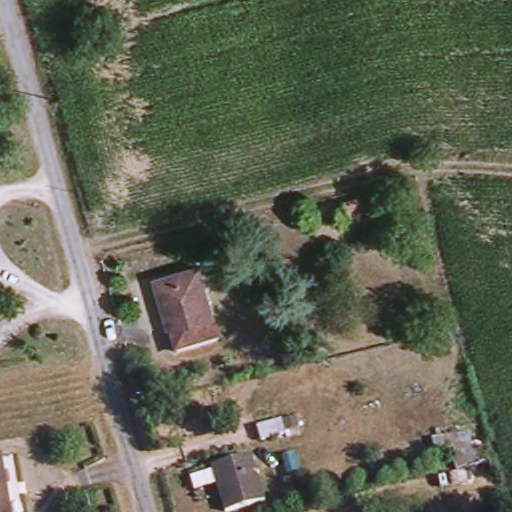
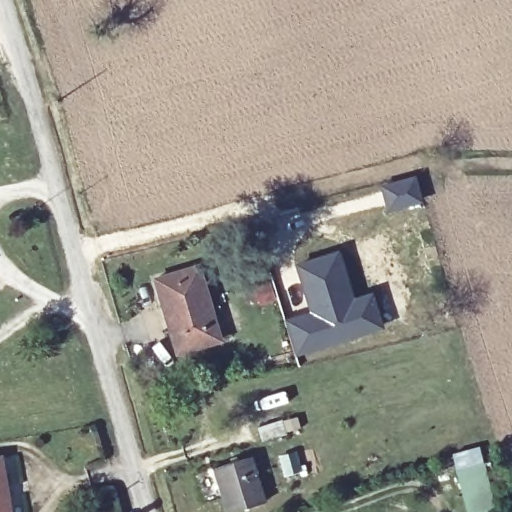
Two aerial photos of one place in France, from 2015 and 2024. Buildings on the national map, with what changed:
new [(415,173),(423,202),(387,211),(378,182),(415,173)]
unchanged [(353,228),(351,217),(362,214),(365,226),(353,228)]
new [(308,309),(292,262),(339,247),(355,295),(372,290),(383,327),(294,356),(282,318),(308,309)]
unchanged [(203,270),(223,342),(182,354),(162,282),(203,270)]
unchanged [(261,306),(253,280),(267,276),(274,302),(261,306)]
unchanged [(252,428),(275,422),(280,437),(257,444),(252,428)]
unchanged [(472,432),(482,463),(493,462),(501,490),(467,497),(449,438),(472,432)]
unchanged [(230,512),(217,465),(257,454),(269,501),(230,512)]
unchanged [(25,512),(0,512),(0,462),(16,460),(25,512)]

